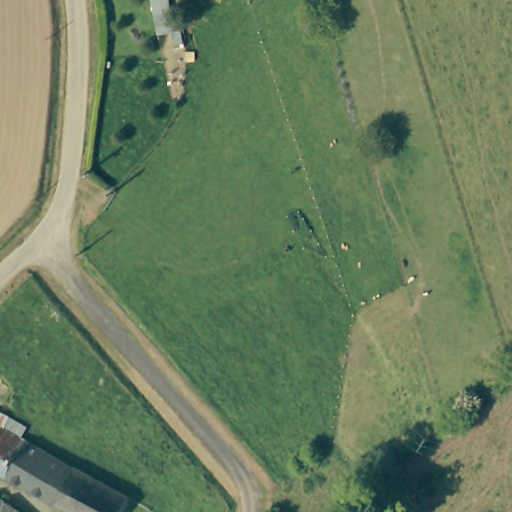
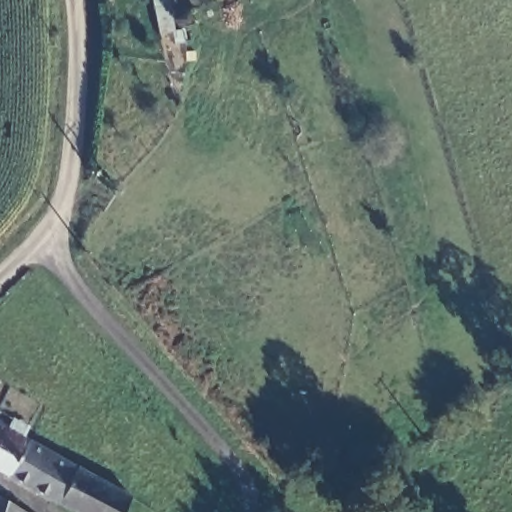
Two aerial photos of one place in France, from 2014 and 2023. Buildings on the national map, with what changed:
unchanged [(8,476),(0,471),(0,424),(27,438),(8,476)]
unchanged [(27,438),(56,455),(76,466),(61,496),(57,503),(8,476),(27,438)]
unchanged [(130,497),(121,512),(75,512),(57,503),(61,496),(76,466),(130,497)]
unchanged [(13,504),(10,512),(0,512),(0,497),(13,504)]

